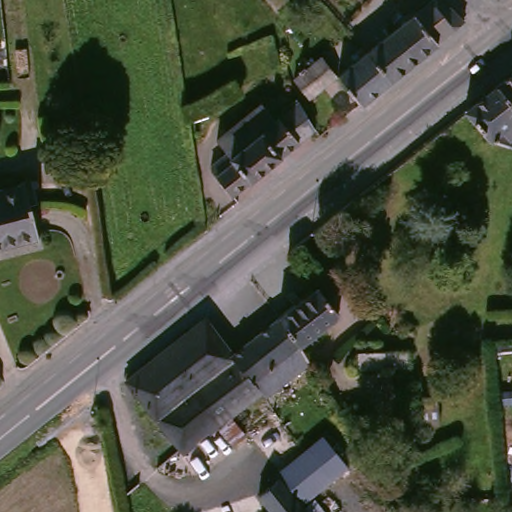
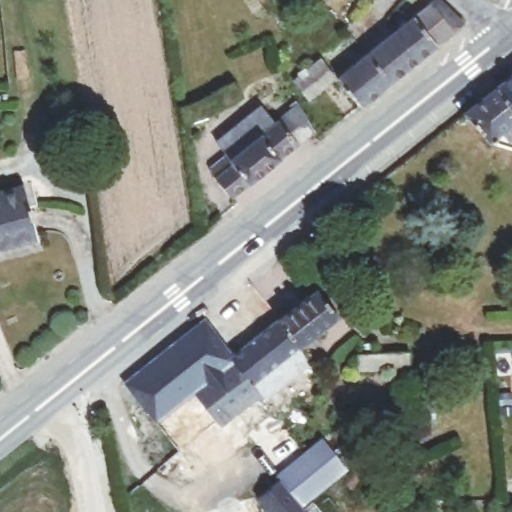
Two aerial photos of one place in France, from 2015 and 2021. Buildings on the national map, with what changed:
unchanged [(367,44),(401,19),(419,5),(425,0),(454,0),(472,20),(463,27),(447,39),(431,52),(396,79),(367,44)]
unchanged [(338,67),(367,44),(396,79),(365,102),(338,67)]
unchanged [(299,68),(323,50),(338,67),(315,87),(299,68)]
unchanged [(512,63),(512,91),(497,74),(512,63)]
unchanged [(512,91),(512,140),(499,135),(466,99),(497,74),(512,91)]
unchanged [(214,162),(217,160),(210,150),(229,135),(216,120),(255,88),(272,110),(289,97),(311,136),(302,144),(238,192),(214,162)]
unchanged [(22,180),(37,230),(0,241),(0,186),(22,180)]
unchanged [(323,279),(350,311),(318,339),(310,345),(281,311),(323,279)]
unchanged [(211,312),(238,345),(281,311),(310,345),(321,356),(276,391),(267,381),(187,446),(127,376),(211,312)]
unchanged [(504,412),(504,390),(512,390),(512,414),(504,415),(504,412)]
unchanged [(319,435),(345,468),(309,502),(306,507),(311,512),(276,512),(257,492),(279,472),(319,435)]
unchanged [(506,473),(506,466),(505,456),(505,436),(512,436),(512,484),(507,485),(506,473)]

